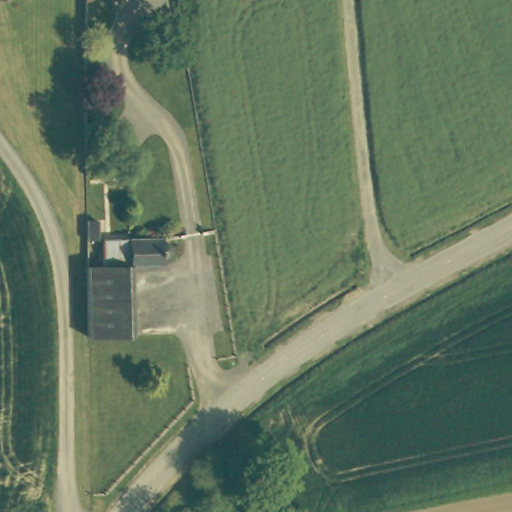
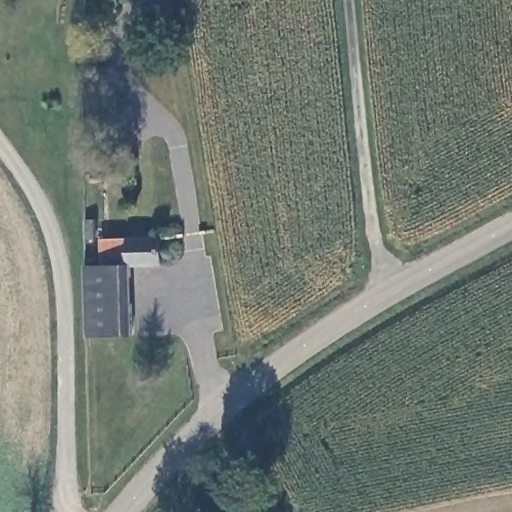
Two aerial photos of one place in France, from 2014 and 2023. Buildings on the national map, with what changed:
unchanged [(120,267),(86,269),(85,235),(160,231),(160,238),(175,239),(178,243),(179,248),(178,252),(174,256),(163,257),(163,264),(130,266),(120,267)]
unchanged [(136,336),(88,339),(86,269),(120,267),(130,266),(136,336)]

